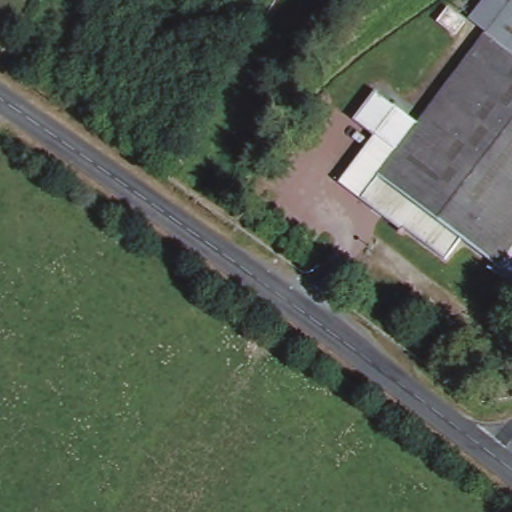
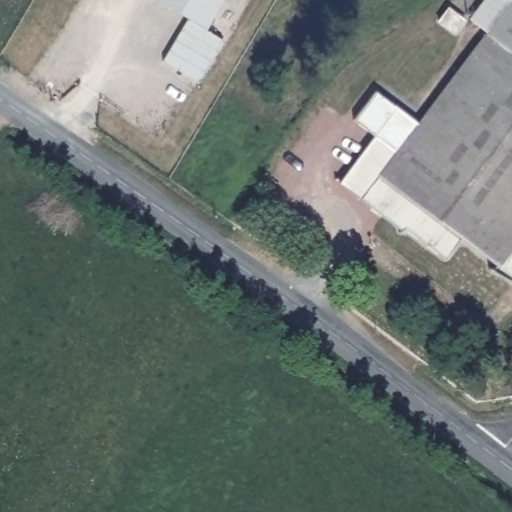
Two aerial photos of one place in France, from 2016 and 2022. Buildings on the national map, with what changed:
new [(206,27),(223,38),(197,81),(161,59),(187,16),(161,0),(222,0),(206,27)]
unchanged [(482,39),(512,1),(512,283),(489,270),(492,264),(458,238),(442,258),(377,210),(377,207),(332,188),(370,140),(349,124),(372,96),(392,111),(414,128),(482,39)]
unchanged [(441,2),(444,2),(460,15),(451,27),(434,13),(441,2)]

